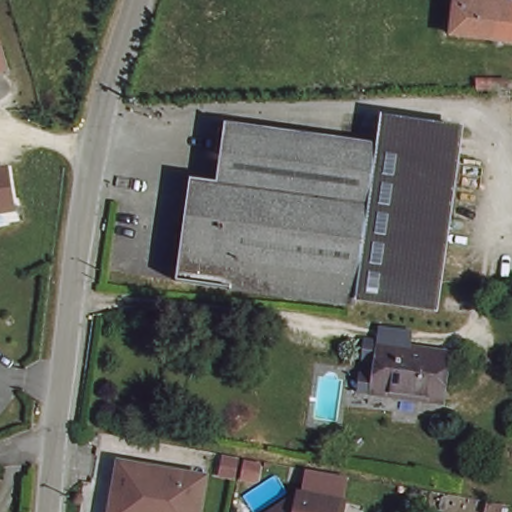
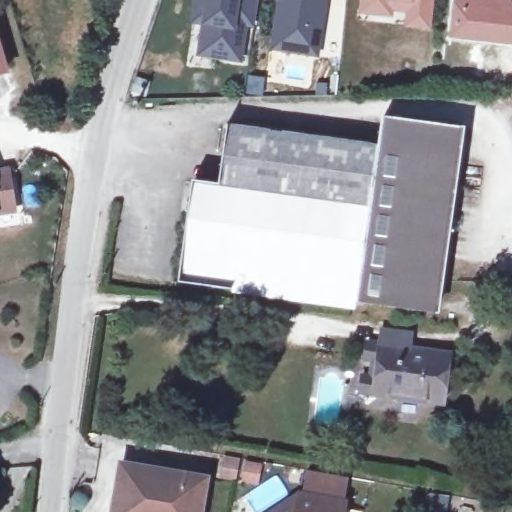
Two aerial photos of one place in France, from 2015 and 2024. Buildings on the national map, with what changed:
new [(217,57),(219,45),(202,42),(205,23),(194,21),(197,0),(258,0),(255,25),(246,24),(241,61),(217,57)]
new [(291,51),(294,36),(276,33),(281,0),(326,0),(318,55),(291,51)]
new [(435,0),(432,31),(402,27),(404,14),(394,13),(394,19),(358,14),(359,0),(435,0)]
unchanged [(458,0),(509,0),(509,6),(512,7),(512,43),(454,36),(458,0)]
unchanged [(5,75),(0,76),(0,61),(5,75)]
unchanged [(479,81),(485,82),(507,83),(508,91),(478,91),(479,81)]
unchanged [(462,136),(437,313),(356,303),(354,311),(178,287),(193,186),(219,189),(228,129),(378,151),(383,125),(462,136)]
unchanged [(3,166),(11,205),(0,207),(0,166),(3,166)]
unchanged [(377,385),(380,363),(366,361),(368,348),(381,350),(383,335),(411,339),(409,353),(451,358),(444,407),(376,398),(361,396),(363,383),(377,385)]
unchanged [(125,463),(147,467),(190,475),(210,478),(203,512),(116,512),(125,463)]
unchanged [(303,495),(307,467),(349,473),(348,503),(303,495)]
unchanged [(341,509),(340,512),(277,512),(296,500),(341,509)]
unchanged [(504,509),(503,512),(487,512),(489,506),(504,509)]

